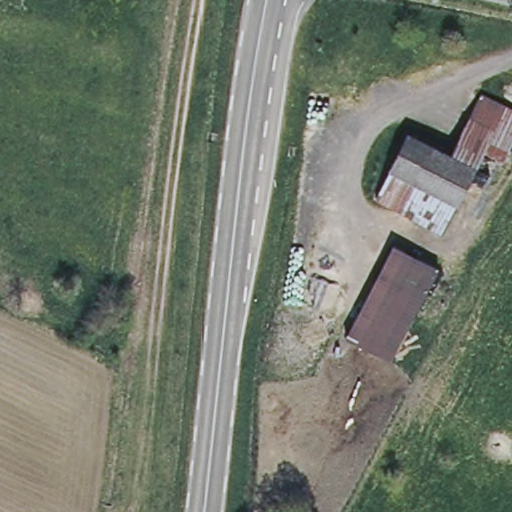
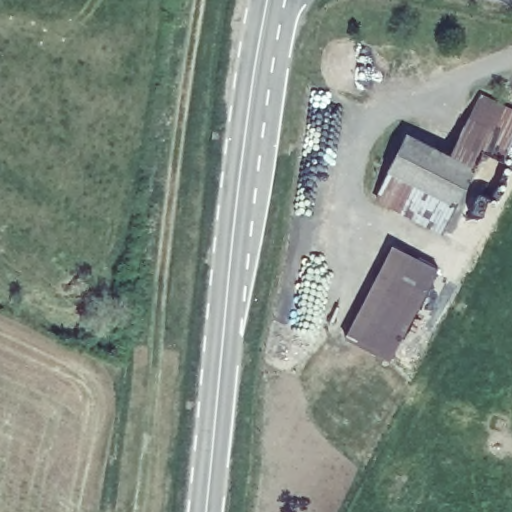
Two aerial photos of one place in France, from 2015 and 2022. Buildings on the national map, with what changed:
unchanged [(479,94),(512,112),(512,138),(501,160),(482,150),(443,229),(375,196),(407,132),(449,153),(479,94)]
unchanged [(436,266),(388,359),(344,337),(394,245),(436,266)]

